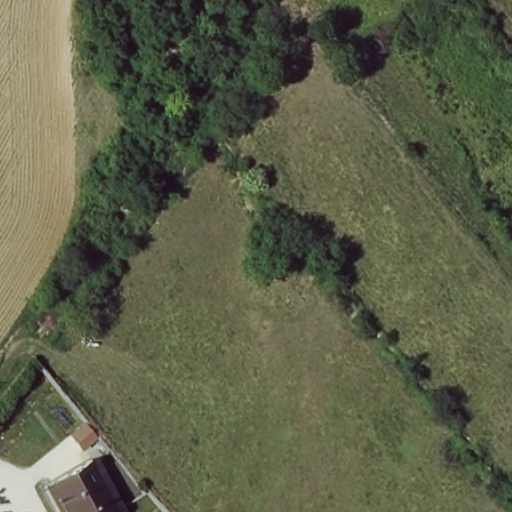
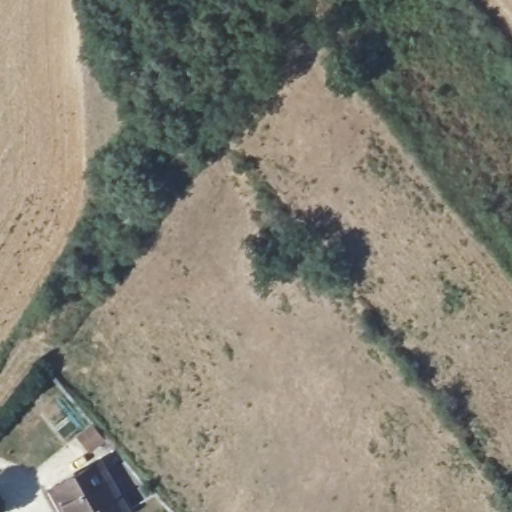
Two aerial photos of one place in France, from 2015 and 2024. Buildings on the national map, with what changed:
unchanged [(123,512),(66,512),(55,486),(101,464),(123,512)]

